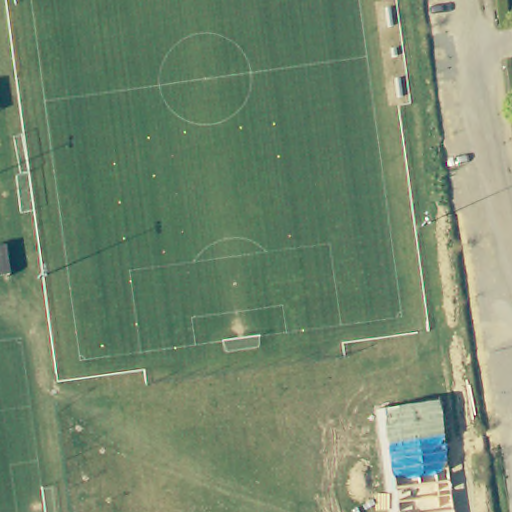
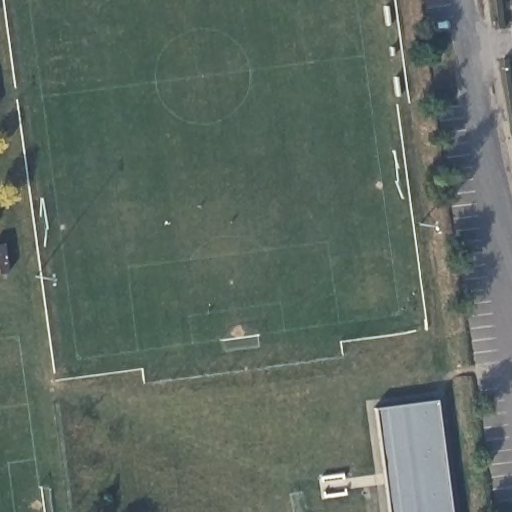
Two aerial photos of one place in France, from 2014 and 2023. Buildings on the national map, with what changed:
new [(453,512),(390,512),(377,410),(438,401),(453,512)]

